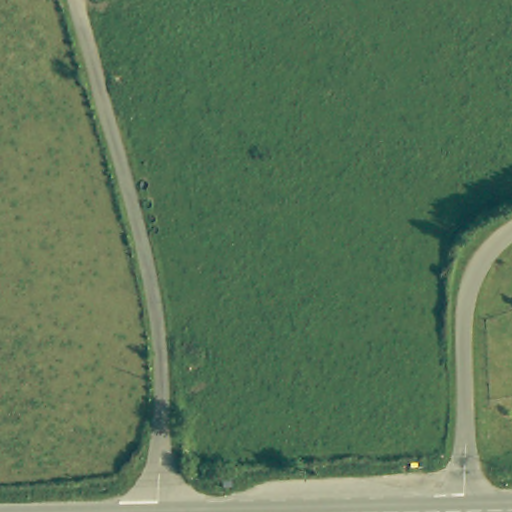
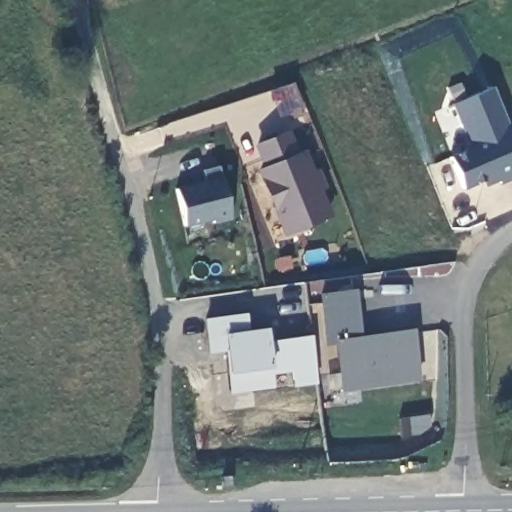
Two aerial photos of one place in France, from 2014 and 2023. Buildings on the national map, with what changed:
new [(288,84),(297,110),(277,116),(269,90),(288,84)]
new [(491,86),(512,136),(512,176),(499,182),(495,173),(462,187),(448,157),(464,149),(467,142),(450,103),(491,86)]
new [(326,215),(291,231),(284,215),(279,218),(259,171),(266,169),(256,146),(283,134),(293,156),(300,153),(309,175),(314,173),(320,186),(315,189),(326,215)]
new [(230,218),(213,223),(211,219),(183,226),(173,188),(203,179),(200,169),(216,165),(218,175),(230,218)]
new [(360,335),(412,328),(419,380),(340,391),(335,344),(324,344),(317,294),(353,289),(360,335)]
new [(267,344),(310,337),(317,379),(296,383),(294,368),(272,371),(275,385),(232,392),(226,351),(210,353),(205,320),(242,314),(246,341),(266,337),(267,344)]
new [(265,331),(266,337),(246,341),(245,334),(265,331)]

